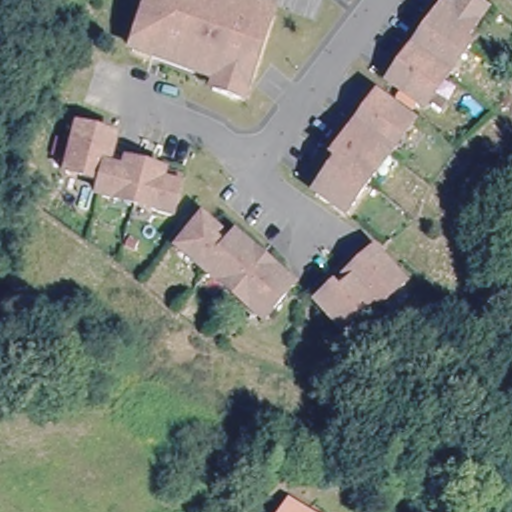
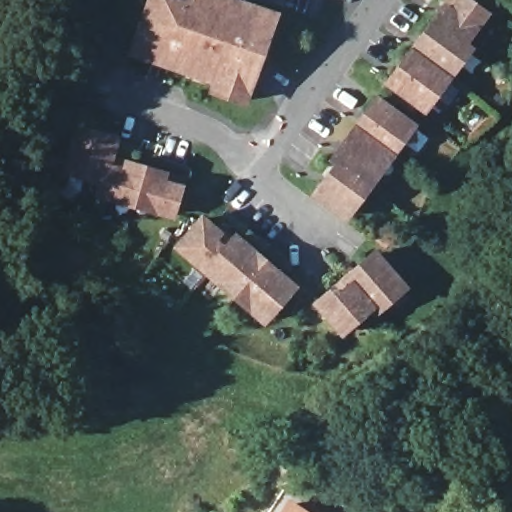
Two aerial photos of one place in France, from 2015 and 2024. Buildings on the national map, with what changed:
unchanged [(126,56),(129,50),(147,0),(153,0),(182,10),(186,0),(211,0),(269,20),(238,107),(207,95),(210,86),(195,80),(177,75),(146,64),(126,56)]
unchanged [(388,84),(396,74),(410,54),(418,45),(433,25),(451,0),(464,0),(485,15),(473,31),(463,45),(464,46),(468,50),(457,65),(445,80),(435,94),(423,110),(388,84)]
unchanged [(315,195),(337,165),(331,160),(338,151),(353,131),(360,121),(376,100),(382,105),(407,123),(412,126),(400,141),(388,157),(378,171),(356,201),(345,217),(340,214),(315,195)]
unchanged [(91,186),(74,181),(55,175),(56,170),(65,141),(67,134),(93,141),(105,145),(99,164),(171,184),(160,220),(141,215),(106,205),(87,199),(91,186)]
unchanged [(249,308),(220,285),(207,273),(192,261),(177,249),(181,245),(201,220),(230,245),(235,239),(255,256),(271,270),(292,288),(287,294),(267,317),(263,321),(249,308)]
unchanged [(317,306),(354,272),(374,255),(379,260),(399,283),(402,288),(388,300),(373,313),(370,309),(356,321),(341,333),(338,330),(317,306)]
unchanged [(291,494),(318,512),(279,512),(291,494)]

